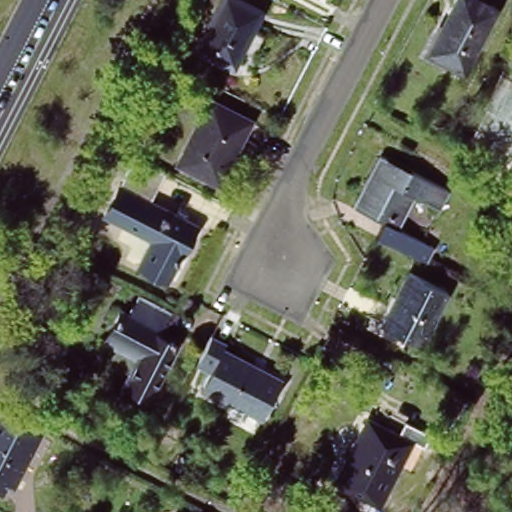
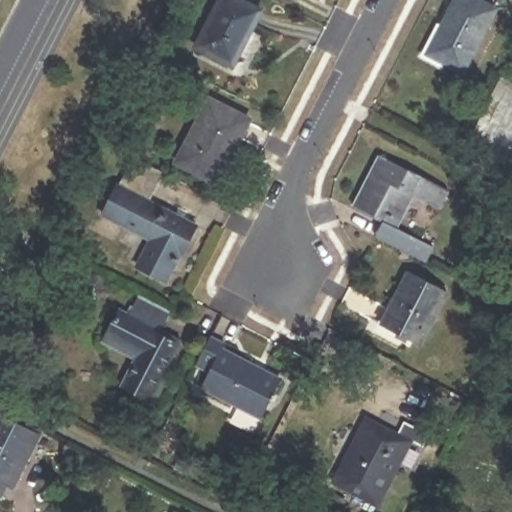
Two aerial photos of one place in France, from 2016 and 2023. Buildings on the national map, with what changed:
unchanged [(262,12),(234,67),(199,49),(224,0),(239,0),(262,12)]
unchanged [(502,9),(469,72),(452,63),(446,75),(421,62),(442,22),(449,25),(461,0),(485,0),(502,9)]
unchanged [(471,139),(501,74),(512,80),(512,157),(471,139)]
unchanged [(219,183),(180,163),(212,100),(252,121),(219,183)]
unchanged [(378,237),(384,223),(355,208),(383,156),(449,191),(439,210),(414,197),(398,228),(435,249),(429,263),(378,237)]
unchanged [(147,208),(193,232),(165,287),(134,271),(146,246),(101,223),(132,163),(163,179),(147,208)]
unchanged [(409,279),(446,299),(427,336),(389,317),(409,279)]
unchanged [(151,334),(178,347),(147,406),(120,393),(136,363),(103,344),(118,316),(127,322),(138,301),(161,313),(151,334)]
unchanged [(213,333),(226,340),(223,346),(284,377),(277,390),(279,391),(276,397),(274,396),(265,413),(203,383),(210,368),(198,362),(213,333)]
unchanged [(8,482),(4,481),(0,489),(0,419),(33,436),(8,482)]
unchanged [(371,424),(402,440),(409,427),(433,440),(427,453),(416,447),(381,511),(337,488),(371,424)]

